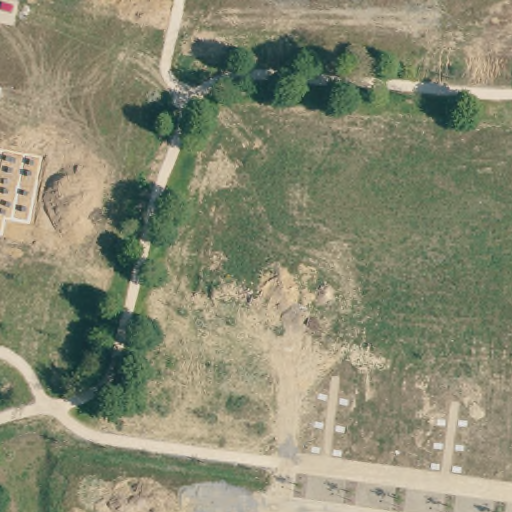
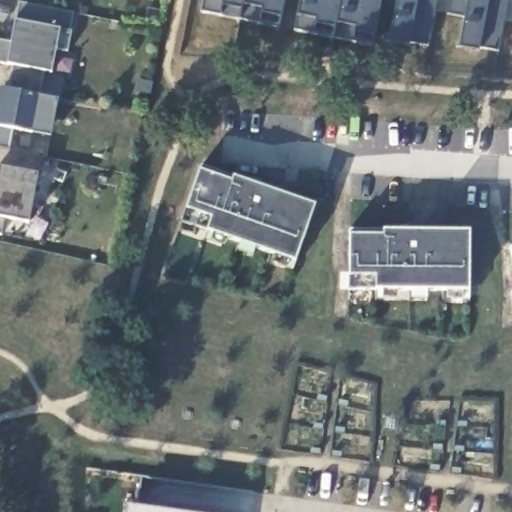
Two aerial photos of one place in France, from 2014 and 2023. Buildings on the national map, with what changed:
new [(204,12),(206,0),(287,0),(282,27),(204,12)]
new [(296,30),(301,0),(382,0),(374,44),(296,30)]
new [(393,37),(398,0),(439,0),(432,44),(393,37)]
new [(462,41),(470,0),(490,0),(510,0),(503,48),(462,41)]
new [(19,65),(8,62),(0,62),(0,41),(12,43),(17,22),(20,2),(73,12),(70,32),(66,52),(56,49),(51,73),(48,72),(41,97),(34,134),(13,129),(8,151),(40,157),(36,175),(27,222),(6,217),(0,234),(0,88),(14,91),(19,65)]
new [(295,260),(206,230),(182,222),(187,209),(200,171),(201,165),(234,177),(314,205),(295,260)]
new [(383,231),(470,232),(468,291),(376,290),(349,290),(350,275),(351,236),(352,231),(383,231)]
new [(512,247),(512,260),(511,253),(508,248),(512,247)]
new [(166,512),(126,512),(126,507),(166,512)]

